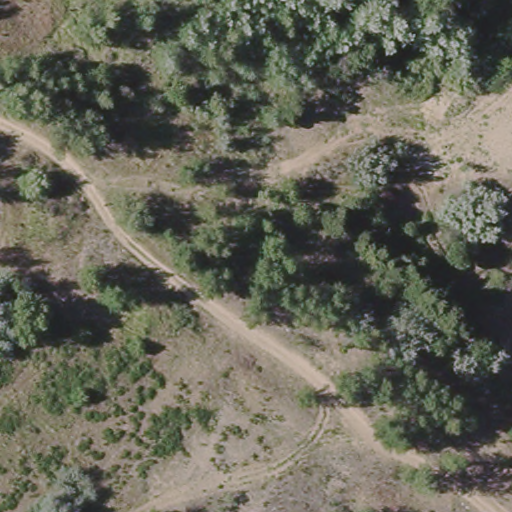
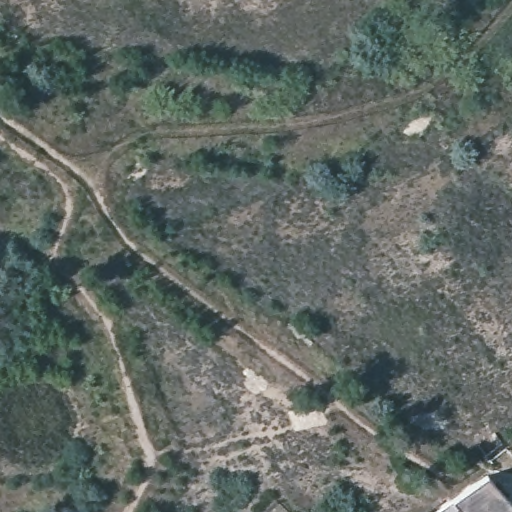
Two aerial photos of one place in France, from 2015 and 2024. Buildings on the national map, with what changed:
new [(512,512),(435,512),(450,500),(487,473),(512,501),(512,512)]

